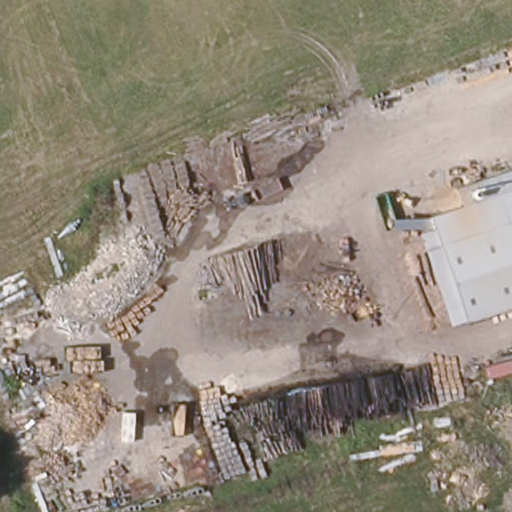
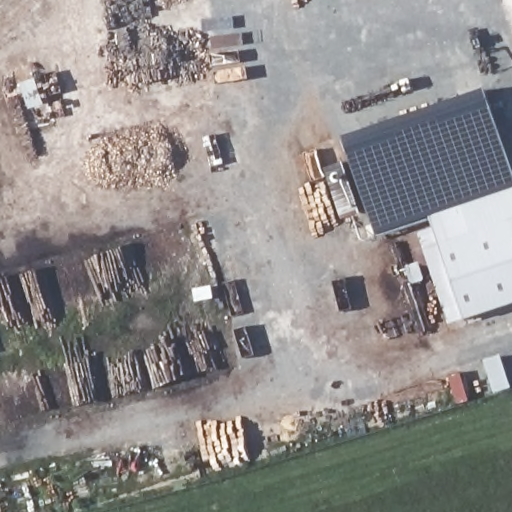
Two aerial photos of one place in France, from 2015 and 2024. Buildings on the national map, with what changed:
new [(479,178),(451,189),(458,207),(468,235),(454,240),(459,255),(466,272),(480,313),(481,315),(449,326),(417,234),(432,229),(429,219),(376,236),(343,139),(485,90),(512,166),(512,186),(486,196),(479,178)]
unchanged [(451,189),(479,178),(486,196),(496,224),(468,235),(451,189)]
unchanged [(486,196),(512,186),(512,302),(495,308),(473,250),(468,235),(496,224),(486,196)]
unchanged [(454,240),(468,235),(473,250),(495,308),(480,313),(459,255),(454,240)]

